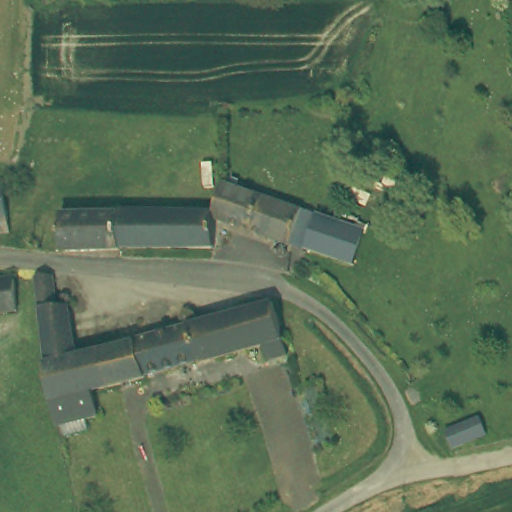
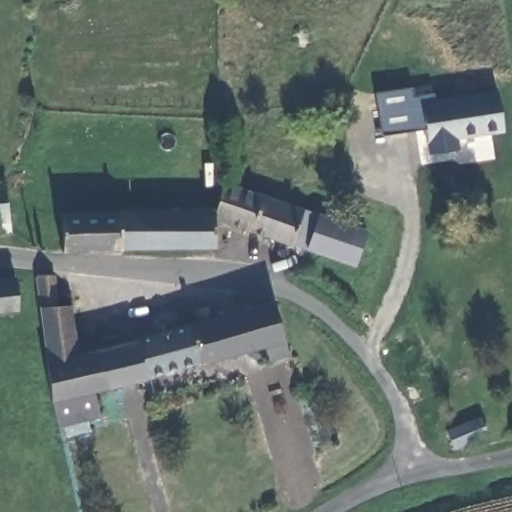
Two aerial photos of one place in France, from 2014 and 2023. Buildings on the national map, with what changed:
new [(372,92),(411,87),(411,96),(432,93),(433,99),(497,89),(503,132),(456,139),(456,148),(428,151),(425,128),(380,134),(372,92)]
unchanged [(8,182),(14,234),(0,236),(0,183),(8,182)]
unchanged [(235,189),(235,184),(251,190),(253,184),(258,186),(257,190),(315,210),(302,246),(226,218),(227,211),(235,189)]
unchanged [(315,210),(365,229),(356,263),(302,246),(315,210)]
unchanged [(132,248),(132,212),(227,211),(226,218),(227,248),(132,248)]
unchanged [(77,246),(78,212),(132,212),(132,248),(102,248),(77,246)]
unchanged [(92,390),(98,417),(58,426),(36,270),(55,272),(60,304),(74,302),(81,349),(103,344),(112,385),(92,390)]
unchanged [(18,277),(22,310),(0,312),(0,279),(18,277)]
unchanged [(279,297),(287,338),(112,385),(103,344),(279,297)]
demolished [(371,449),(351,454),(345,428),(384,419),(392,444),(371,449)]
unchanged [(477,438),(451,448),(444,432),(470,422),(477,438)]

